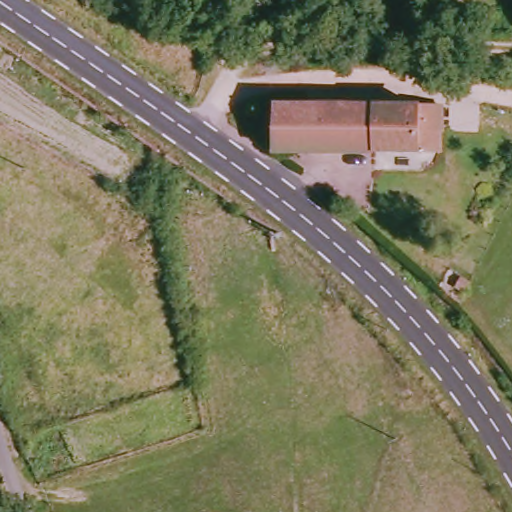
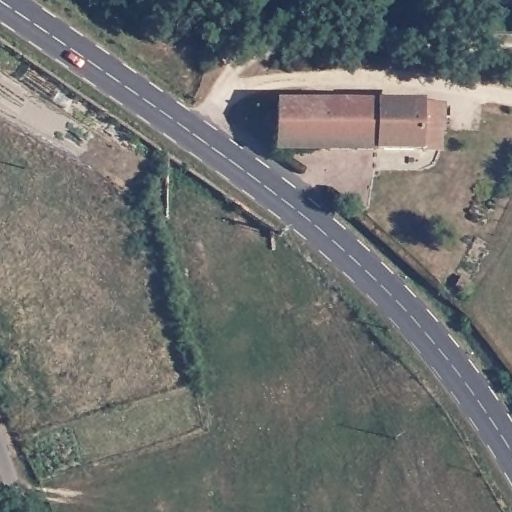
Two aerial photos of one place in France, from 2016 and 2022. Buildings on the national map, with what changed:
unchanged [(421,124),(421,147),(277,150),(276,126),(267,126),(267,111),(276,112),(276,98),(443,95),(443,124),(421,124)]

